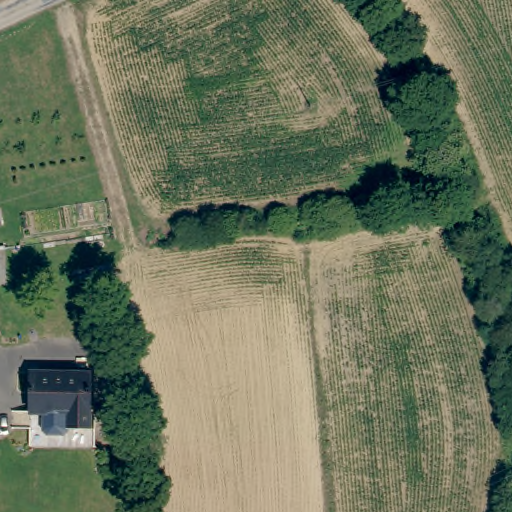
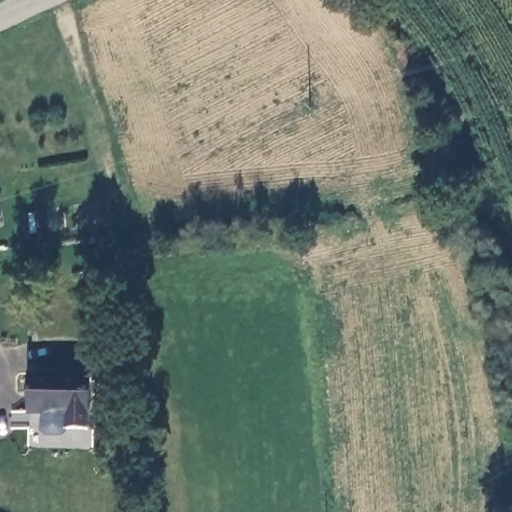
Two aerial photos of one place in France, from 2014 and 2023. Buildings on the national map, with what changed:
unchanged [(92,357),(94,432),(32,432),(32,356),(92,357)]

